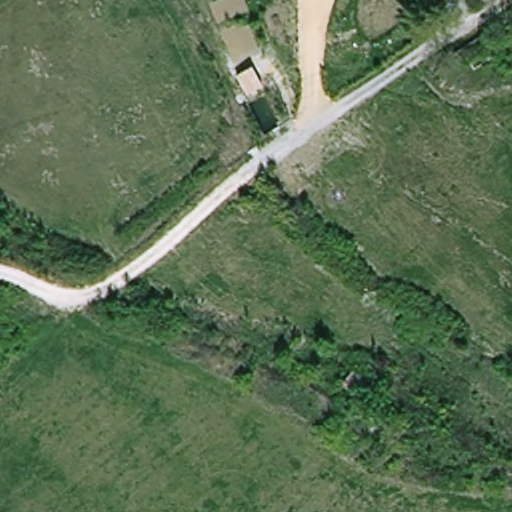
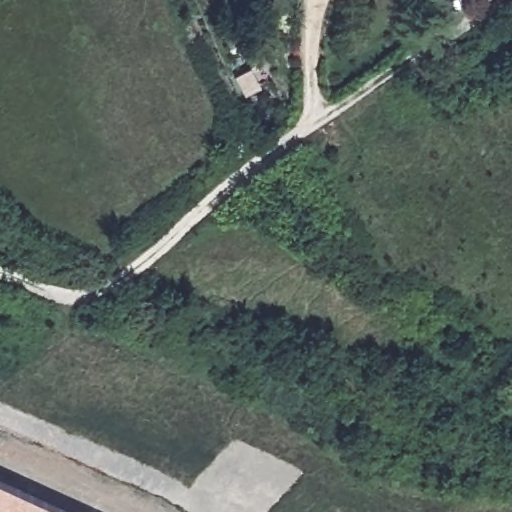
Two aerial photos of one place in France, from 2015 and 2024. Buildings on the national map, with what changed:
unchanged [(488,1),(487,0),(490,0),(488,1)]
new [(72,512),(0,512),(0,479),(72,512)]

